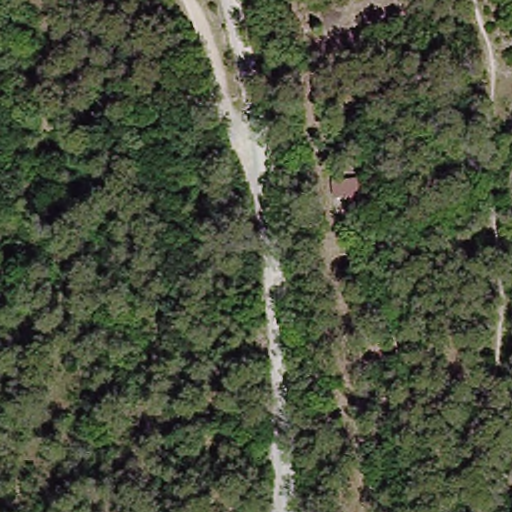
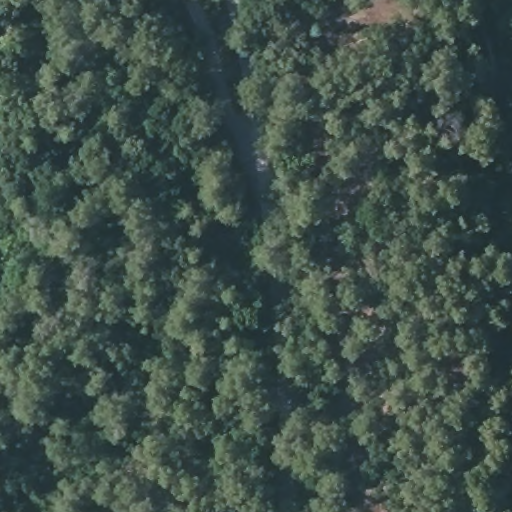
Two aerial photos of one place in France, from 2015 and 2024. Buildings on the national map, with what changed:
unchanged [(330,206),(328,182),(359,180),(362,215),(347,216),(346,204),(330,206)]

